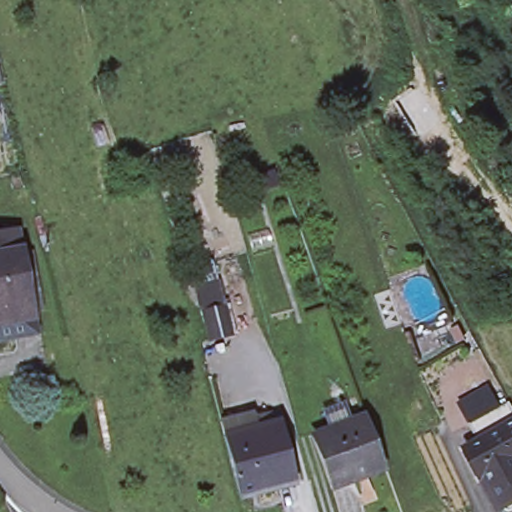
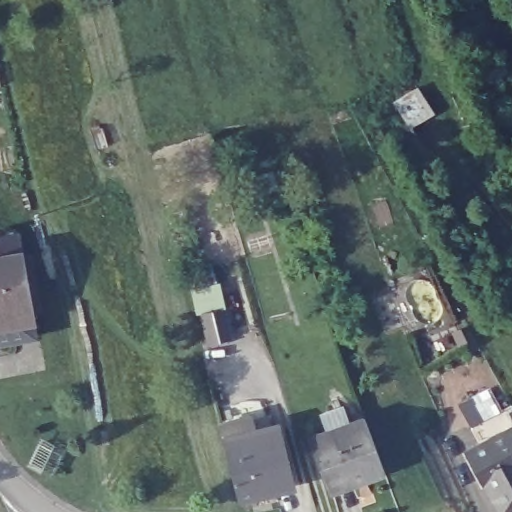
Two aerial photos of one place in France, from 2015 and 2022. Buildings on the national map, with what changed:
unchanged [(0,234),(15,231),(19,252),(31,317),(34,333),(0,340),(0,234)]
unchanged [(219,283),(230,340),(208,345),(193,288),(219,283)]
unchanged [(471,430),(511,408),(512,410),(512,510),(508,512),(499,512),(468,454),(481,447),(471,430)]
unchanged [(278,422),(293,485),(238,498),(221,436),(278,422)]
unchanged [(364,422),(383,473),(331,493),(311,441),(364,422)]

